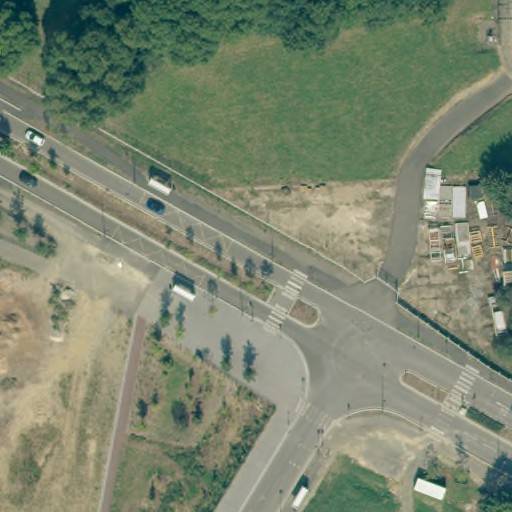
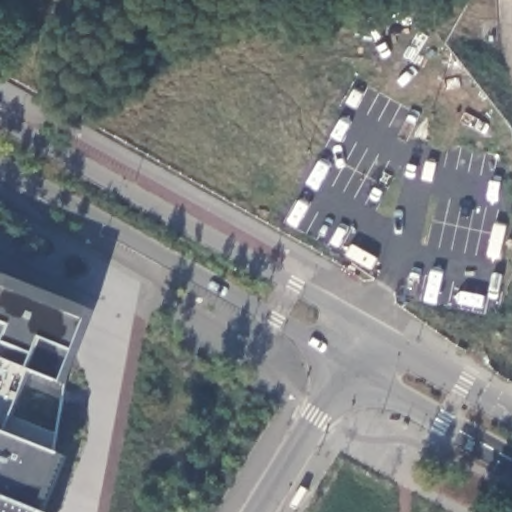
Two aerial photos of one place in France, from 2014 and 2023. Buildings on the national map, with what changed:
new [(32,372),(9,433),(62,455),(41,512),(0,512),(0,274),(94,312),(66,384),(32,372)]

